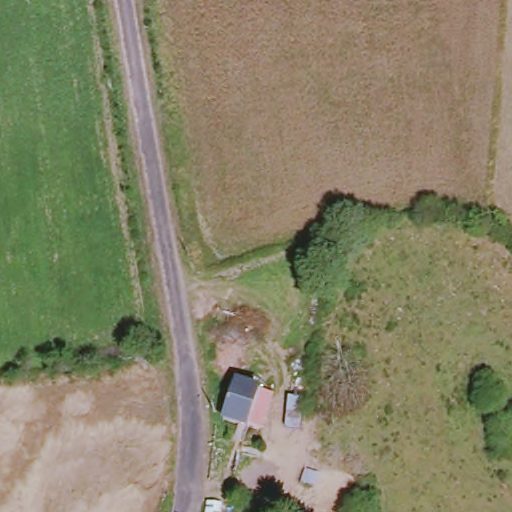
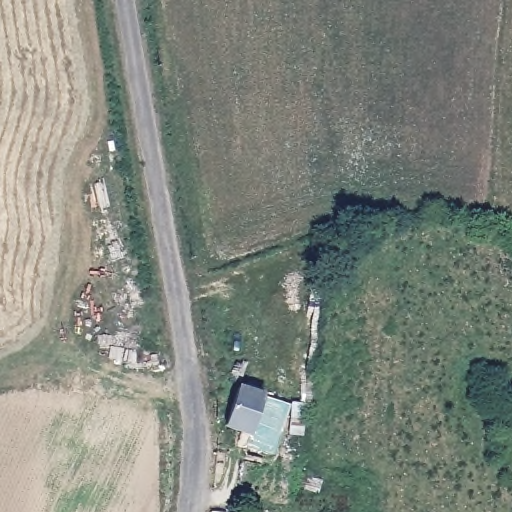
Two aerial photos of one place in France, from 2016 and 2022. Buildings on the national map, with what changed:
unchanged [(247,434),(220,423),(234,383),(263,396),(247,434)]

